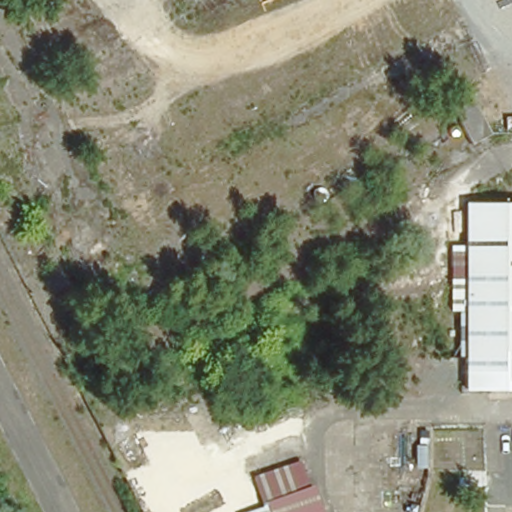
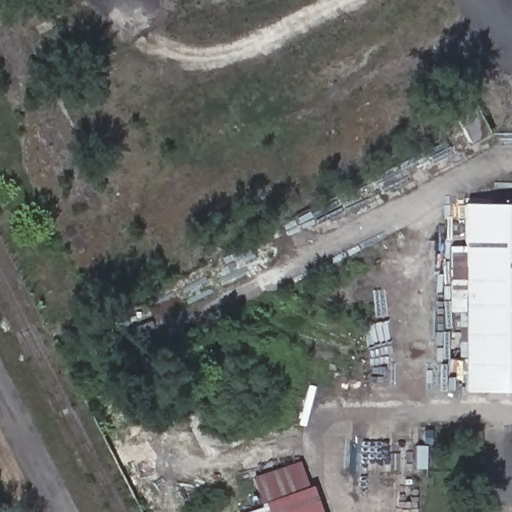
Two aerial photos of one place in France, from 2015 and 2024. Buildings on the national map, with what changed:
unchanged [(472,145),(448,97),(468,88),(491,135),(472,145)]
unchanged [(462,391),(463,206),(512,207),(512,391),(462,391)]
unchanged [(273,497),(305,485),(315,508),(317,512),(270,512),(265,500),(273,497)]

